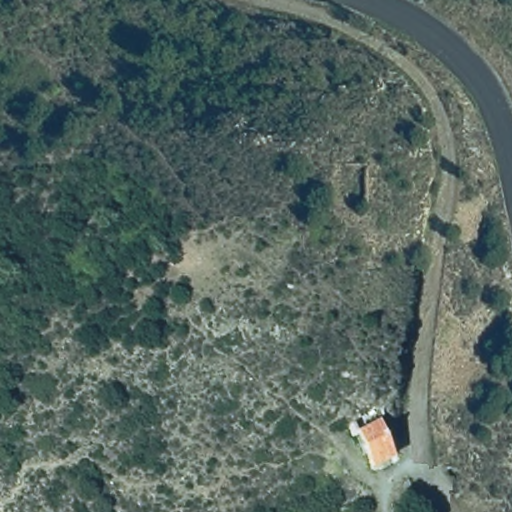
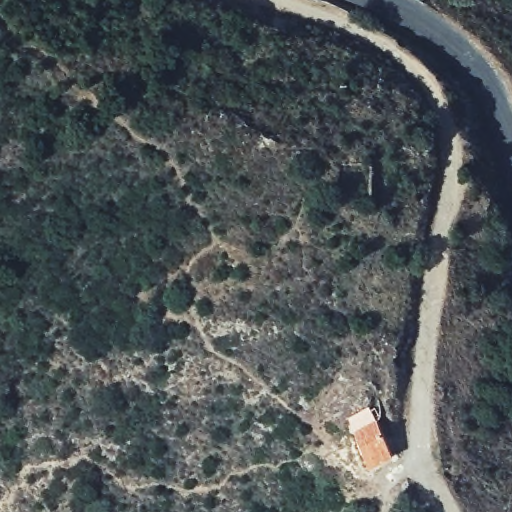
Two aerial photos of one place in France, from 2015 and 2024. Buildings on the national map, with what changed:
unchanged [(381,418),(403,458),(376,474),(353,430),(381,418)]

